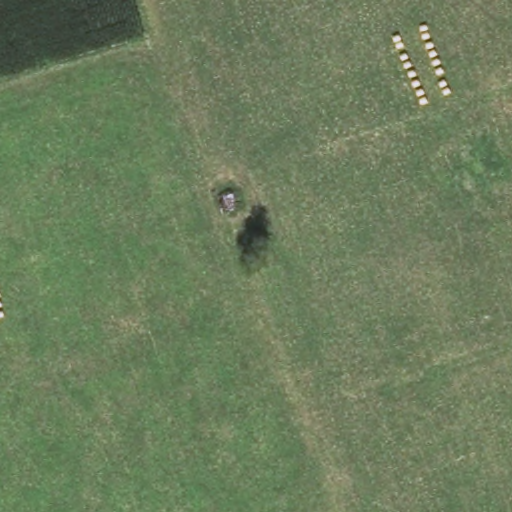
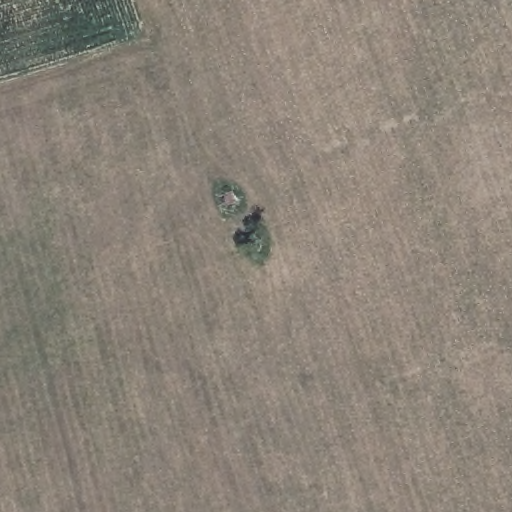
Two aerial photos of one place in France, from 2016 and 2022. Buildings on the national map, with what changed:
unchanged [(220,208),(216,189),(234,186),(240,202),(220,208)]

